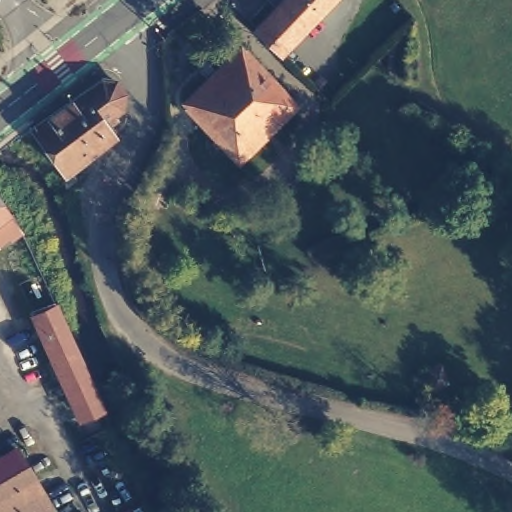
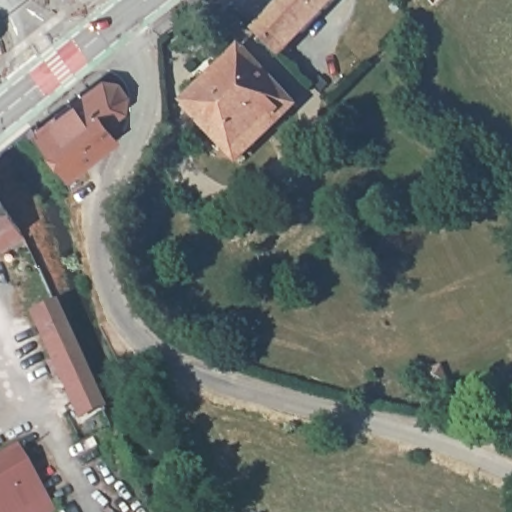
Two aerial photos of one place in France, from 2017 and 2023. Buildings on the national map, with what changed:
unchanged [(277,0),(327,0),(279,48),(260,29),(255,22),(277,0)]
unchanged [(292,107),(241,160),(186,106),(237,53),(292,107)]
unchanged [(97,71),(114,71),(123,81),(122,97),(110,105),(112,109),(102,115),(105,121),(110,128),(65,164),(57,155),(31,124),(97,71)]
unchanged [(0,234),(0,201),(7,209),(13,224),(0,234)]
unchanged [(50,355),(59,351),(40,310),(60,300),(78,337),(107,401),(87,410),(66,366),(57,369),(52,359),(50,355)]
unchanged [(47,499),(22,512),(0,512),(0,453),(17,444),(47,499)]

